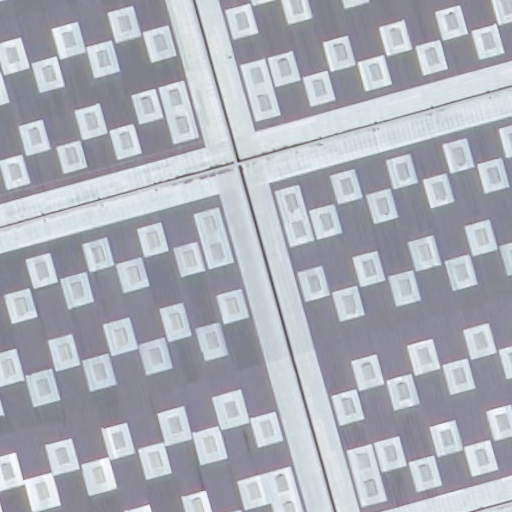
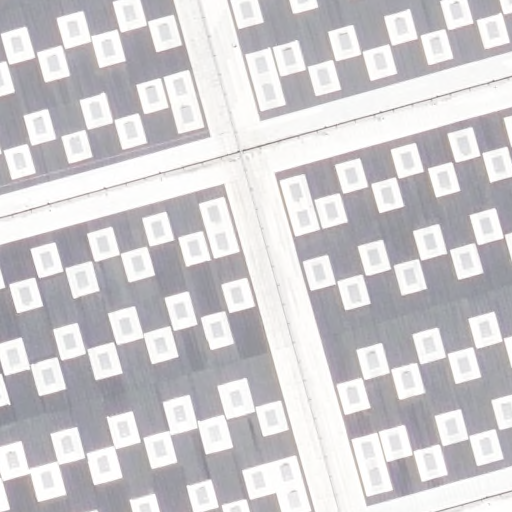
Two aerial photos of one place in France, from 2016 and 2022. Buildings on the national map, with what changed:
unchanged [(0,512),(0,0),(512,0),(512,512),(0,512)]

